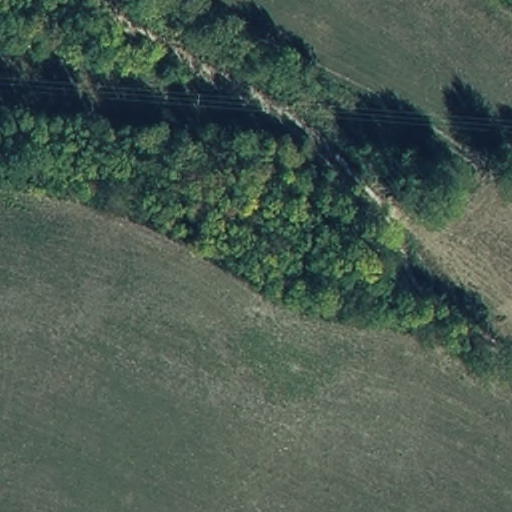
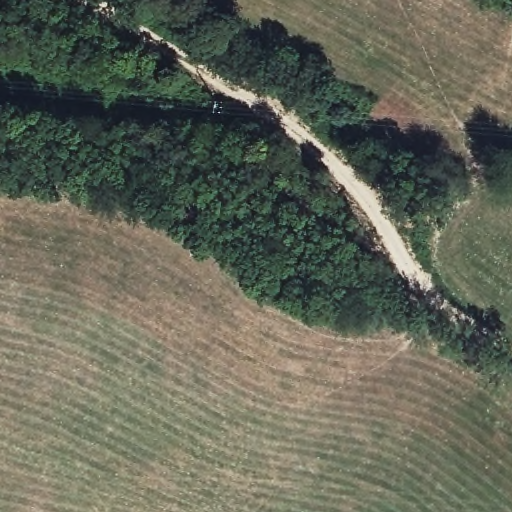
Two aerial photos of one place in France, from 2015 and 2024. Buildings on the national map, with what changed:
[]

